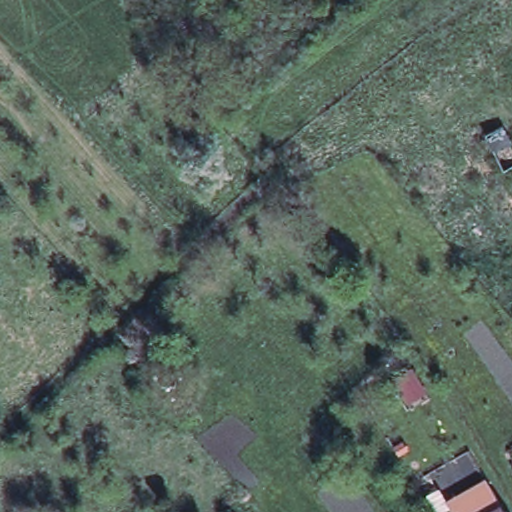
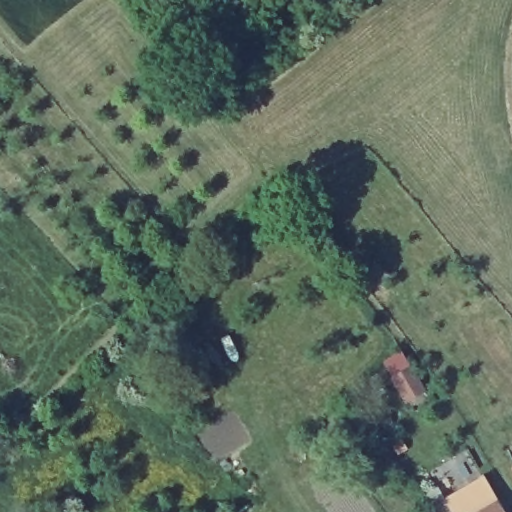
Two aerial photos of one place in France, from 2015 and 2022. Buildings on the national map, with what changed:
unchanged [(512,445),(512,452),(510,446),(512,445)]
unchanged [(488,483),(505,512),(455,512),(451,504),(488,483)]

